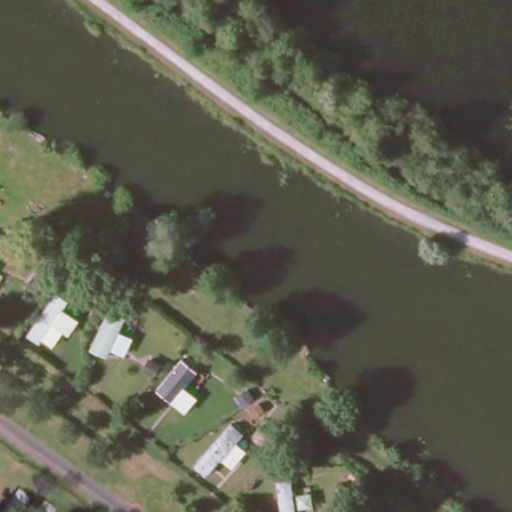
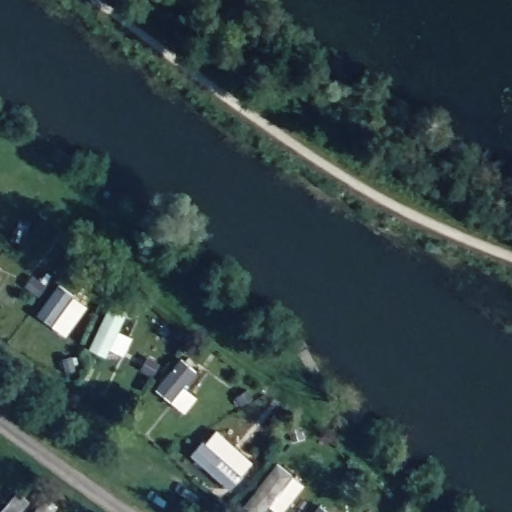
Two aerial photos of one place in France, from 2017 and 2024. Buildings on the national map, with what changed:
[]

